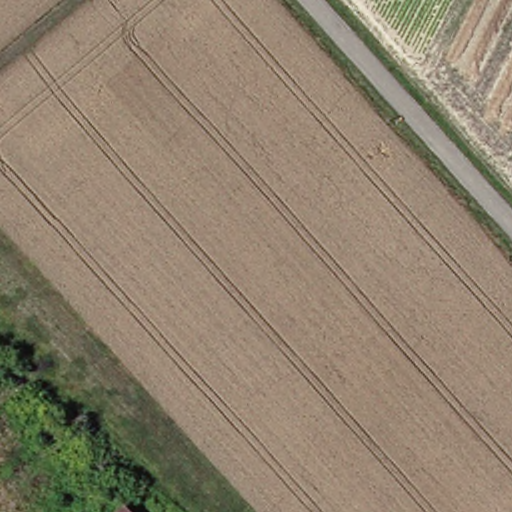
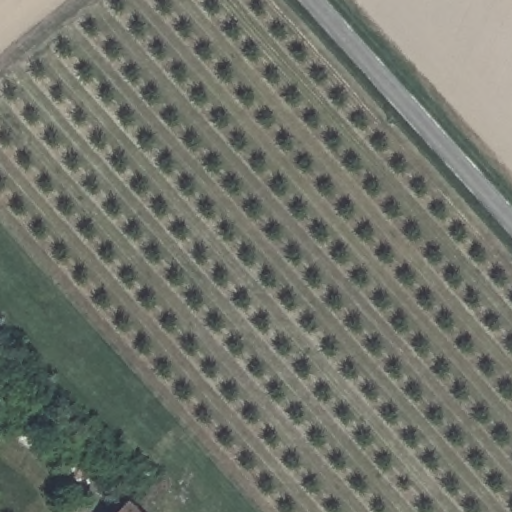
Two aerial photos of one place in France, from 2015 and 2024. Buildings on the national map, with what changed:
unchanged [(129,512),(122,512),(126,509),(129,512)]

